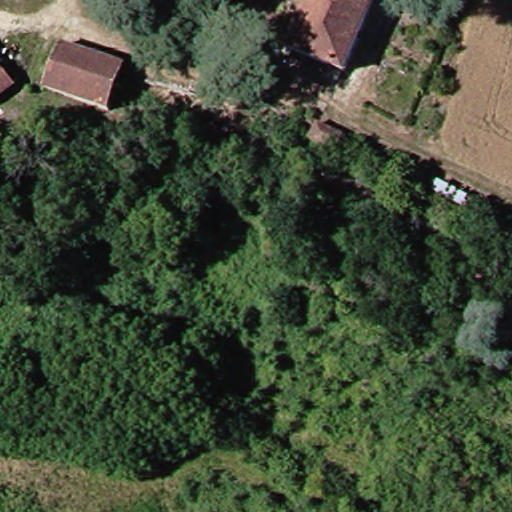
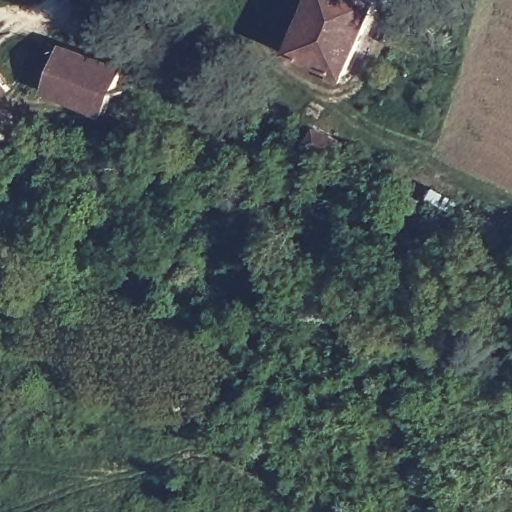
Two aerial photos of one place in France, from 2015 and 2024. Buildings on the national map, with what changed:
unchanged [(327,80),(330,68),(296,54),(317,0),(378,0),(344,85),(327,80)]
unchanged [(112,114),(48,90),(62,44),(126,66),(112,114)]
unchanged [(13,84),(0,96),(0,69),(13,84)]
unchanged [(312,147),(306,165),(279,154),(287,134),(312,147)]

